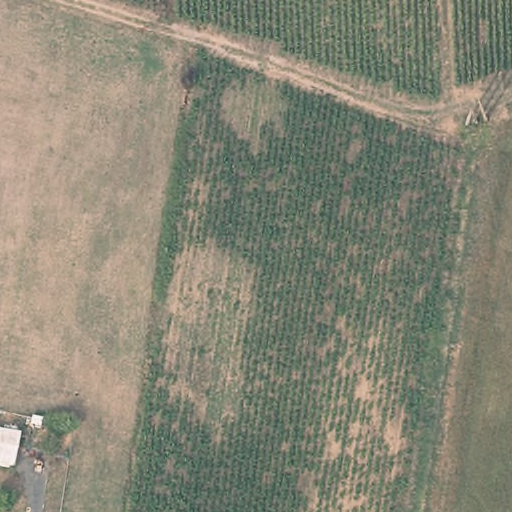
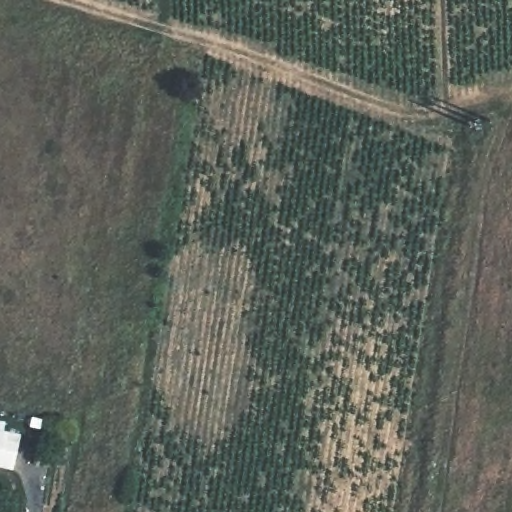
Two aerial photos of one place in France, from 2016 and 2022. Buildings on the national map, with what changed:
unchanged [(0,465),(0,429),(18,433),(13,466),(0,465)]

